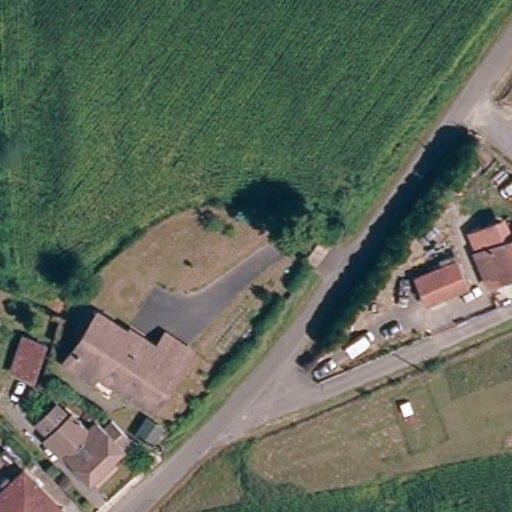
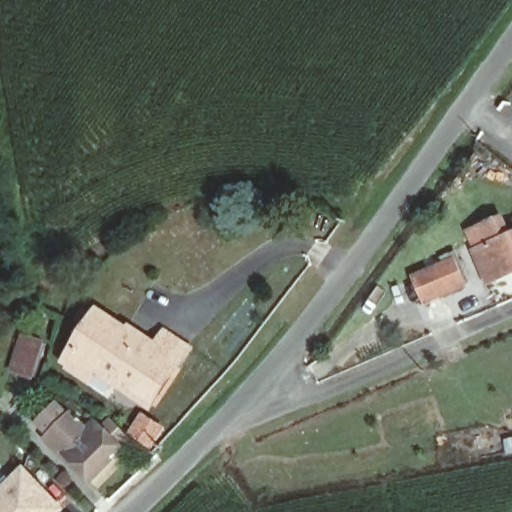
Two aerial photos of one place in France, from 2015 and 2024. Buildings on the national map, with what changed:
unchanged [(512,238),(512,273),(493,282),(481,253),(512,238)]
unchanged [(448,257),(462,285),(427,302),(412,273),(448,257)]
unchanged [(184,366),(157,402),(105,367),(100,375),(72,358),(80,344),(75,343),(85,320),(92,323),(99,310),(102,312),(136,334),(184,366)]
unchanged [(142,323),(167,338),(172,331),(196,348),(184,366),(136,334),(142,323)]
unchanged [(61,335),(50,375),(24,366),(36,324),(61,335)]
unchanged [(117,424),(136,441),(95,481),(55,438),(44,427),(64,408),(77,420),(81,416),(95,431),(102,424),(111,430),(117,424)]
unchanged [(0,498),(26,475),(59,512),(0,512),(0,498)]

